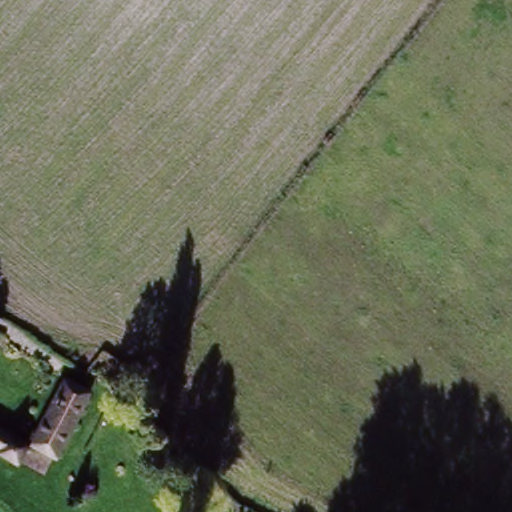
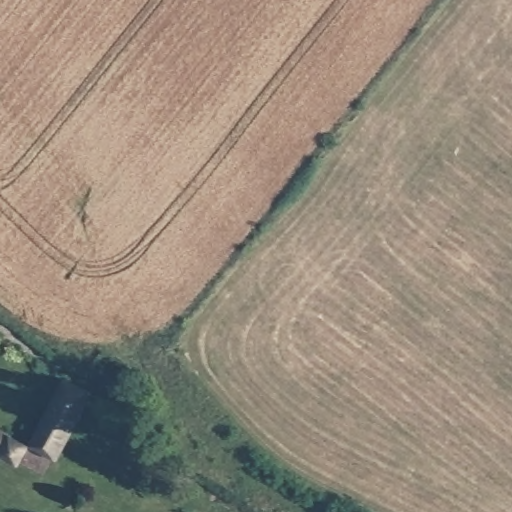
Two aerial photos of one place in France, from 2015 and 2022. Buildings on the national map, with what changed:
unchanged [(58,451),(37,439),(68,385),(73,376),(85,382),(80,391),(89,397),(58,451)]
unchanged [(0,456),(0,432),(23,444),(12,462),(0,456)]

